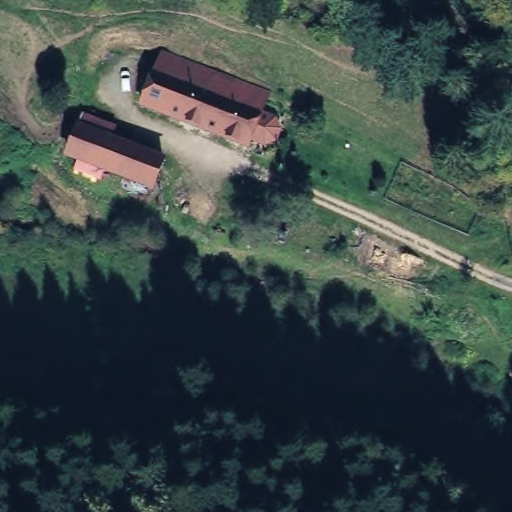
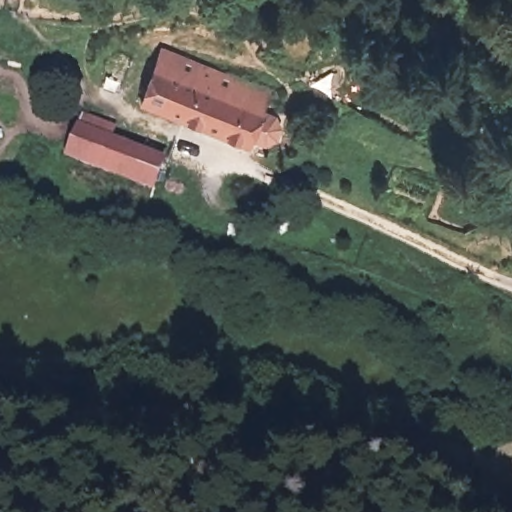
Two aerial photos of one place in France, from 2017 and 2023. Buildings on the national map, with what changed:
unchanged [(161,45),(230,75),(221,91),(153,67),(161,45)]
unchanged [(221,91),(230,75),(270,91),(245,145),(136,105),(153,67),(221,91)]
unchanged [(157,191),(67,159),(86,115),(115,125),(112,136),(166,157),(157,191)]

